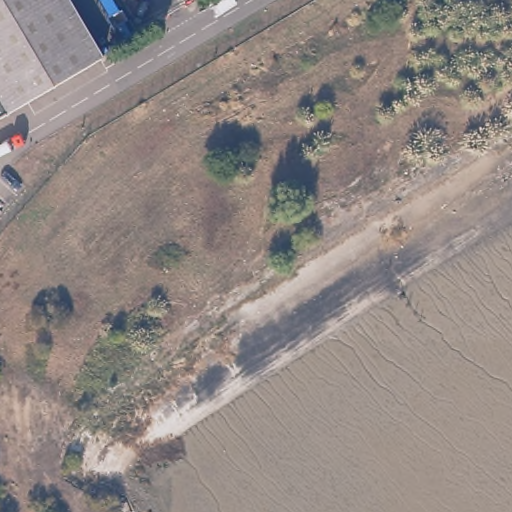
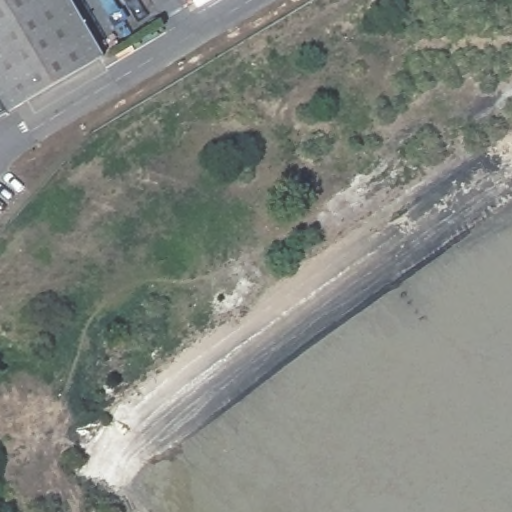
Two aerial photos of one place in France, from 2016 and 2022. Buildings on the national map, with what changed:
unchanged [(10,111),(0,95),(0,0),(72,0),(105,56),(10,111)]
unchanged [(0,117),(0,95),(10,111),(0,117)]

